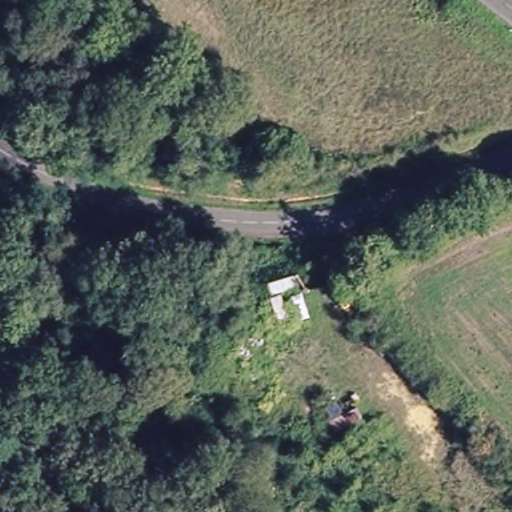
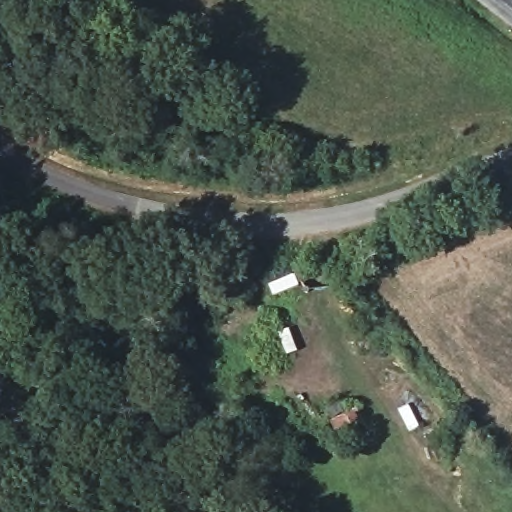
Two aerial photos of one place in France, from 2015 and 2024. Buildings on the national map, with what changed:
[]

